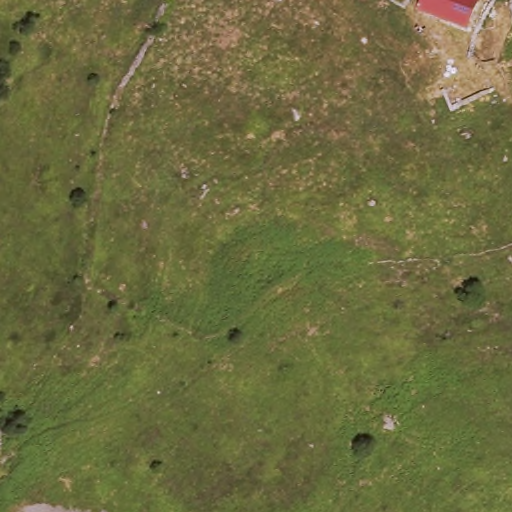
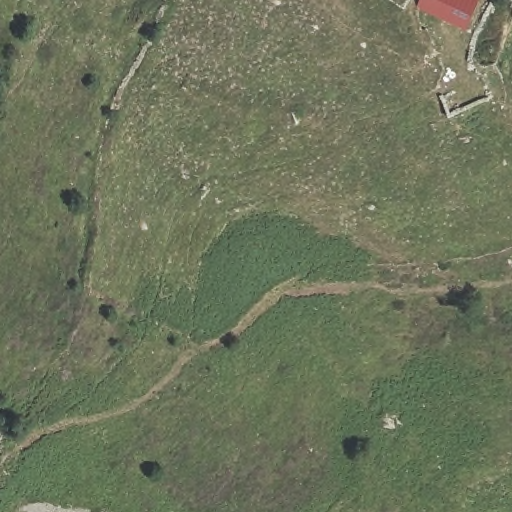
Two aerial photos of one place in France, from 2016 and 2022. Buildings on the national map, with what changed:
unchanged [(426,0),(484,0),(471,33),(421,11),(426,0)]

